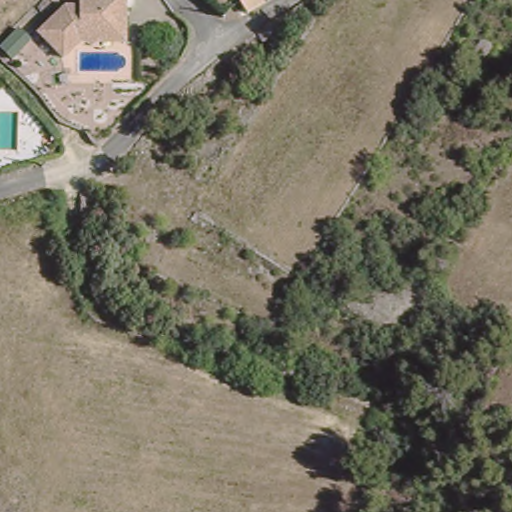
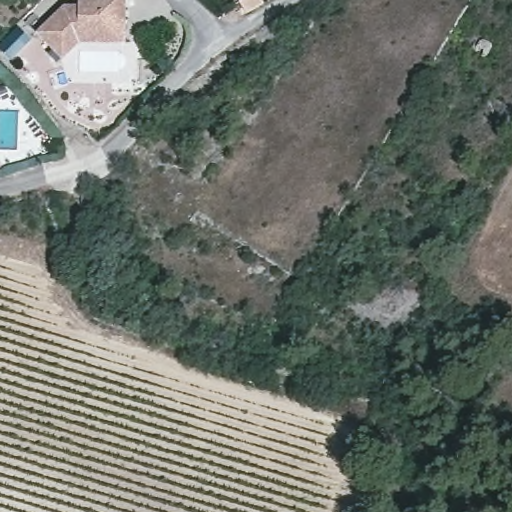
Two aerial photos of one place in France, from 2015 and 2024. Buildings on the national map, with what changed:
unchanged [(64,51),(37,27),(58,0),(119,0),(120,16),(121,31),(82,35),(64,51)]

